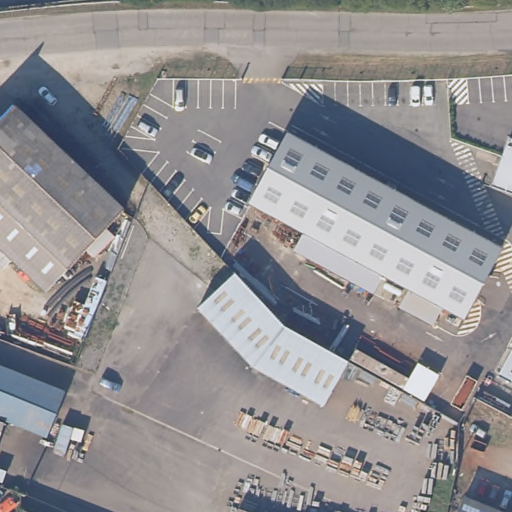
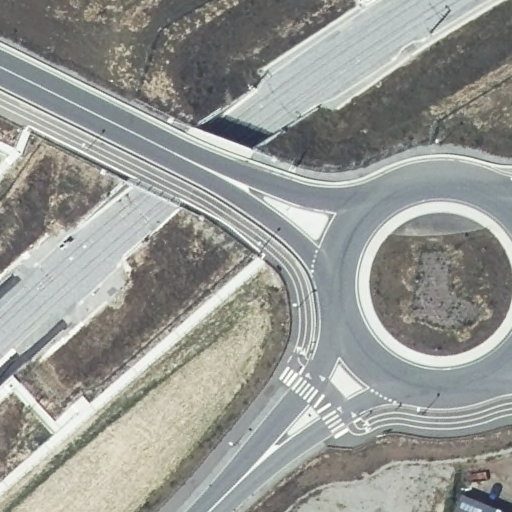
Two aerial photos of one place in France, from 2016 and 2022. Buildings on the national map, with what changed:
demolished [(83,247),(91,256),(81,267),(72,260),(45,288),(0,247),(0,109),(115,210),(83,247)]
demolished [(386,272),(377,290),(296,249),(306,231),(252,204),(288,134),(503,242),(466,313),(445,303),(412,285),(386,272)]
demolished [(508,140),(512,141),(512,195),(486,186),(508,140)]
demolished [(282,327),(350,362),(328,405),(258,367),(201,311),(235,278),(282,327)]
demolished [(497,376),(512,350),(512,384),(497,376)]
demolished [(45,434),(5,419),(0,417),(0,360),(65,384),(45,434)]
demolished [(0,417),(5,419),(0,435),(0,417)]
unchanged [(470,487),(512,506),(512,512),(460,512),(470,487)]
demolished [(238,502),(264,512),(234,512),(238,502)]
demolished [(23,506),(38,512),(21,512),(23,506)]
demolished [(310,509),(319,512),(309,512),(310,509)]
demolished [(323,510),(329,512),(323,512),(323,510)]

